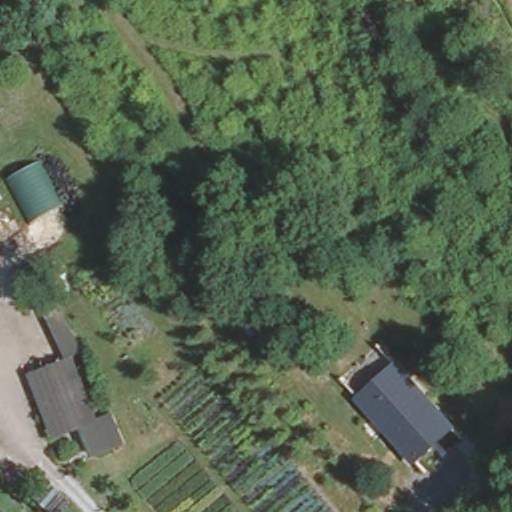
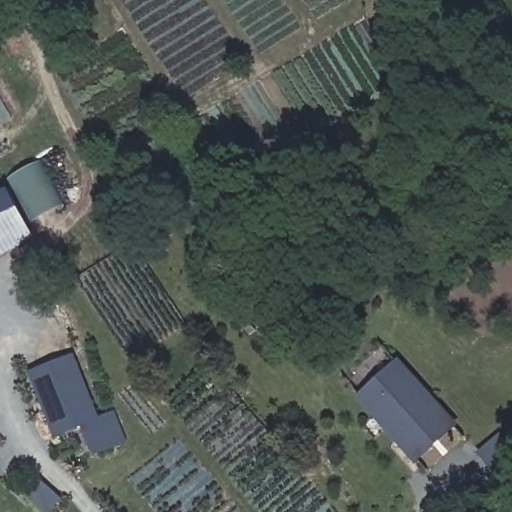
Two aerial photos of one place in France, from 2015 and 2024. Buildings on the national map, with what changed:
new [(0,122),(0,106),(7,118),(0,122)]
unchanged [(36,220),(9,175),(41,158),(65,203),(36,220)]
new [(34,240),(0,258),(0,193),(6,190),(34,240)]
unchanged [(74,354),(99,414),(109,409),(121,441),(96,455),(80,424),(58,437),(29,370),(74,354)]
unchanged [(418,464),(359,396),(403,359),(460,427),(418,464)]

